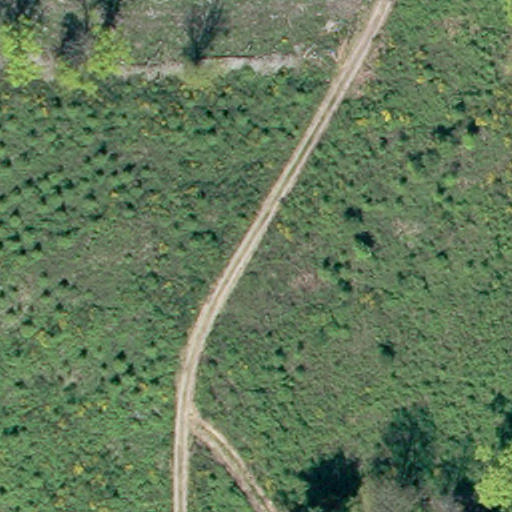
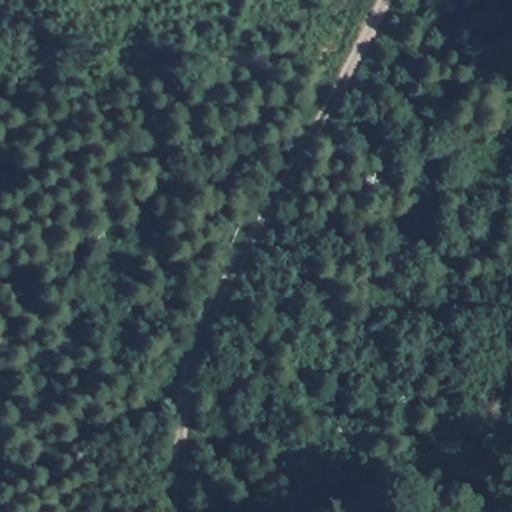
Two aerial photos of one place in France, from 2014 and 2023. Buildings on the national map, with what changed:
[]

